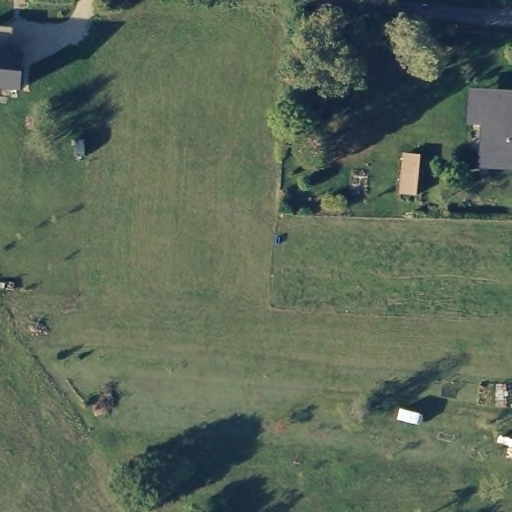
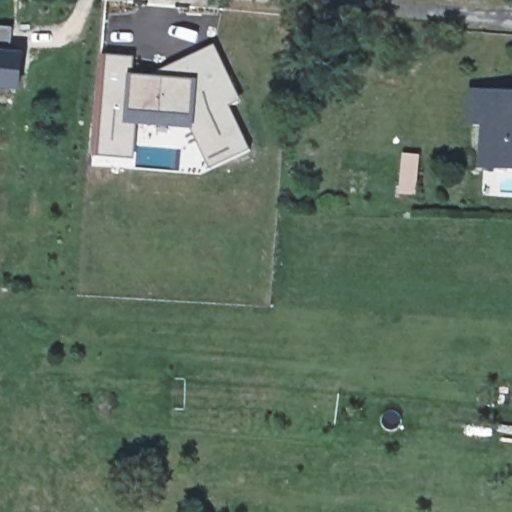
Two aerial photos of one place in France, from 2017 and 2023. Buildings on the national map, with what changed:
unchanged [(11,50),(23,51),(22,91),(0,90),(0,27),(13,29),(11,50)]
new [(217,170),(206,144),(195,118),(137,112),(134,140),(133,150),(116,150),(97,147),(104,56),(137,60),(135,77),(150,80),(182,65),(217,49),(220,55),(237,94),(242,105),(232,110),(247,145),(251,155),(217,170)]
unchanged [(477,170),(482,101),(512,103),(512,172),(477,170)]
unchanged [(416,195),(400,194),(404,155),(420,156),(416,195)]

